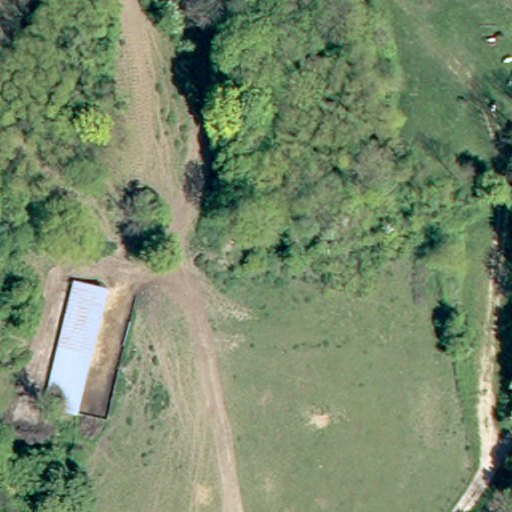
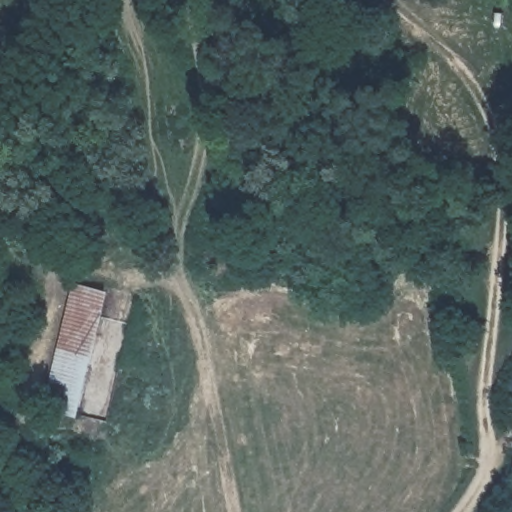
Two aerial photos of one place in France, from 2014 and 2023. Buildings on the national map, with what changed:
unchanged [(40,406),(70,279),(106,286),(77,417),(40,406)]

